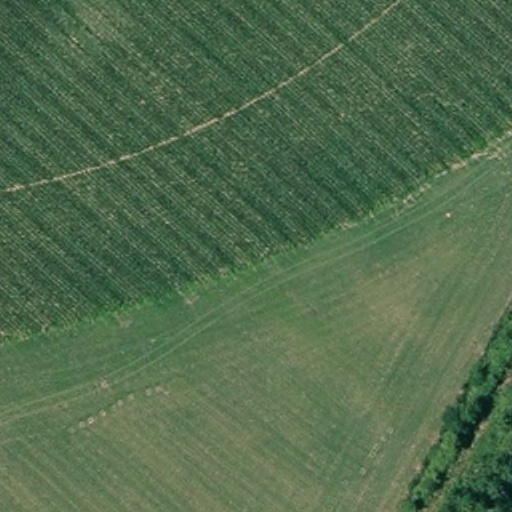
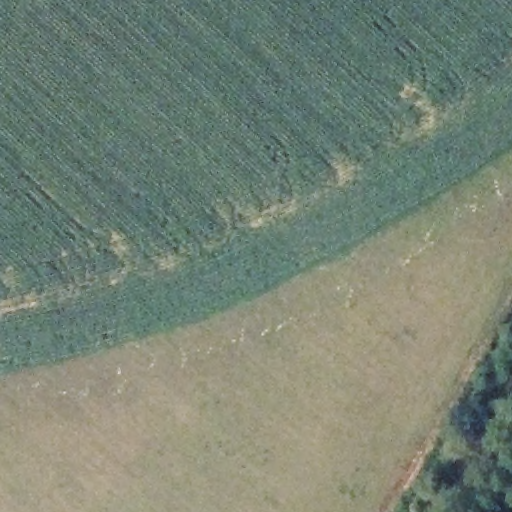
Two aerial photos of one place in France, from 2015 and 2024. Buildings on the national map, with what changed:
[]

